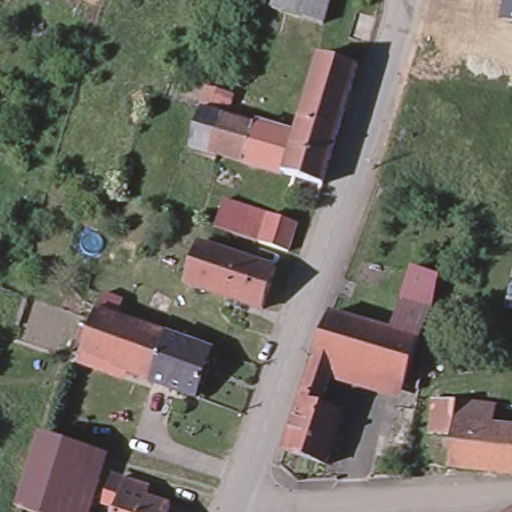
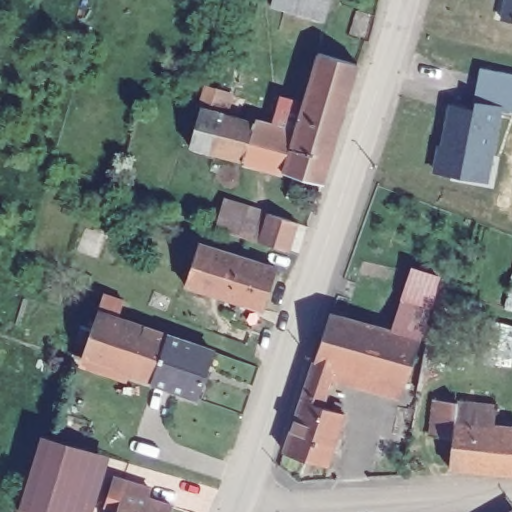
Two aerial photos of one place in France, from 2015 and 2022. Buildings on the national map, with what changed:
unchanged [(271,6),(273,0),(328,0),(322,21),(271,6)]
unchanged [(500,18),(504,0),(512,0),(512,21),(500,18)]
unchanged [(319,53),(357,64),(339,129),(300,117),(319,53)]
new [(502,110),(488,183),(432,173),(437,145),(440,146),(448,104),(472,108),(479,68),(512,74),(512,112),(502,110)]
unchanged [(283,173),(243,161),(190,146),(200,107),(224,114),(230,95),(260,103),(254,123),(295,135),(283,173)]
unchanged [(300,117),(339,129),(322,184),(283,173),(295,135),(300,117)]
unchanged [(292,250),(215,226),(225,195),(271,205),(269,212),(301,221),(292,250)]
unchanged [(239,256),(225,297),(185,284),(198,243),(239,256)]
unchanged [(277,268),(264,311),(225,297),(239,256),(277,268)]
unchanged [(413,391),(399,387),(370,379),(387,332),(388,332),(412,262),(442,272),(423,341),(423,342),(413,391)]
unchanged [(156,377),(87,353),(103,307),(110,289),(127,295),(122,313),(172,331),(156,377)]
unchanged [(387,332),(370,379),(332,368),(317,406),(297,400),(327,314),(387,332)]
unchanged [(218,346),(201,393),(156,377),(172,331),(218,346)]
unchanged [(449,463),(452,432),(431,431),(435,395),(457,397),(496,402),(494,421),(512,423),(512,470),(449,463)]
unchanged [(317,406),(340,413),(322,466),(280,452),(297,400),(317,406)]
unchanged [(108,456),(91,512),(26,512),(18,510),(42,435),(108,456)]
unchanged [(170,512),(120,512),(120,511),(105,507),(112,483),(119,479),(150,488),(147,498),(172,506),(170,512)]
unchanged [(512,508),(512,512),(505,512),(512,508)]

